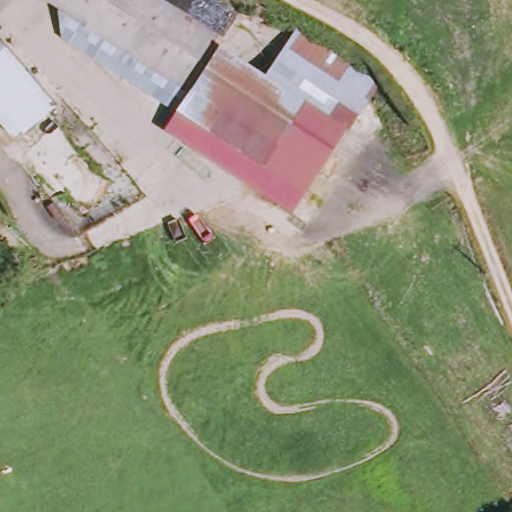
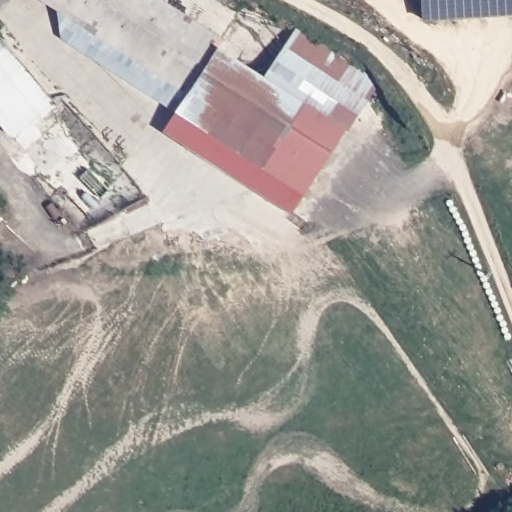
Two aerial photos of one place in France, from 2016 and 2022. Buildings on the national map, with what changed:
unchanged [(65,41),(63,10),(44,0),(167,0),(226,35),(218,48),(270,80),(300,28),(386,82),(356,123),(326,106),(321,111),(304,101),(266,170),(179,114),(175,111),(65,41)]
new [(422,0),(512,0),(512,14),(424,20),(422,0)]
unchanged [(15,141),(0,122),(0,37),(59,109),(15,141)]
unchanged [(179,114),(266,170),(304,101),(321,111),(326,106),(356,123),(342,132),(299,198),(286,217),(160,134),(175,111),(179,114)]

